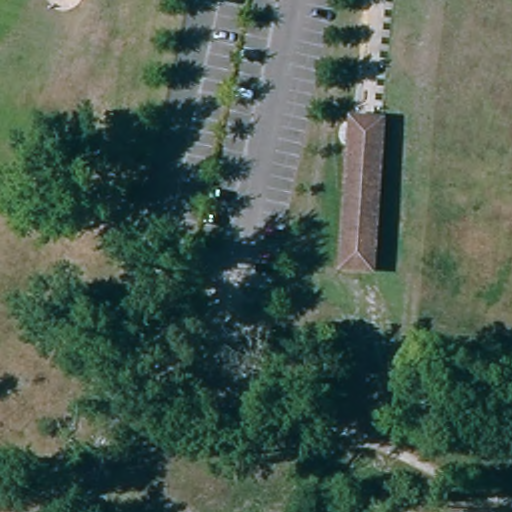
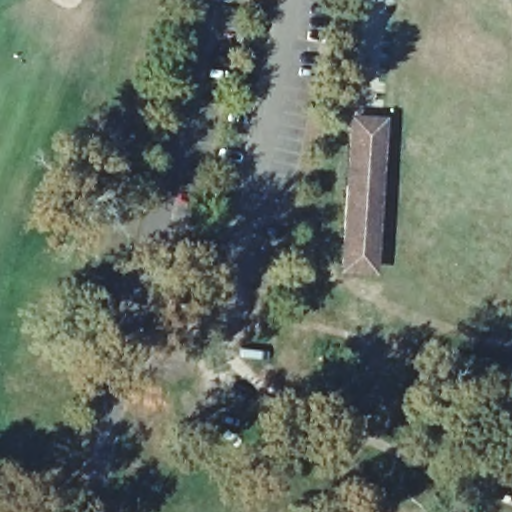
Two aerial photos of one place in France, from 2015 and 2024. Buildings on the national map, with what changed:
unchanged [(382,130),(362,280),(334,277),(353,127),(382,130)]

